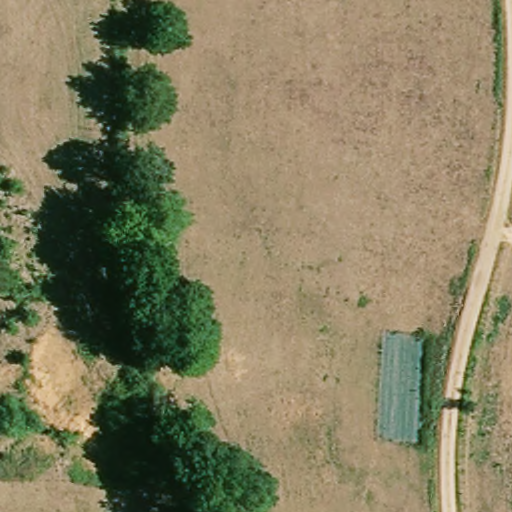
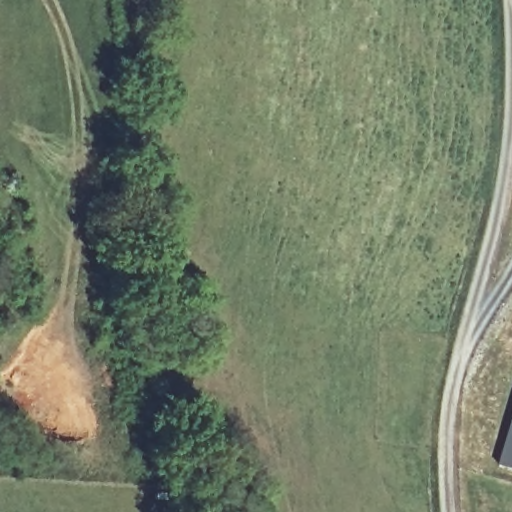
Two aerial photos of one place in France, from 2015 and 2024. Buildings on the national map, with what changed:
new [(500,466),(512,422),(512,470),(500,466)]

